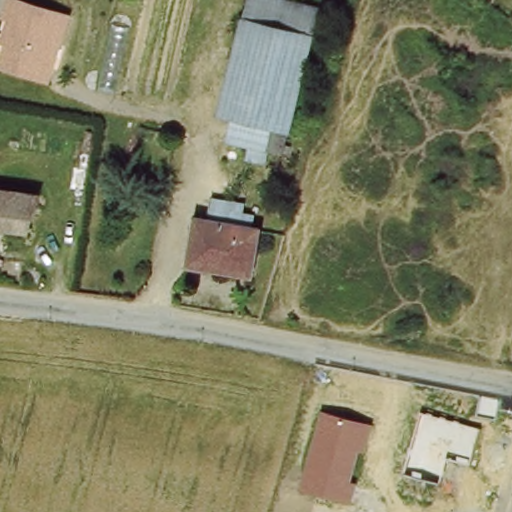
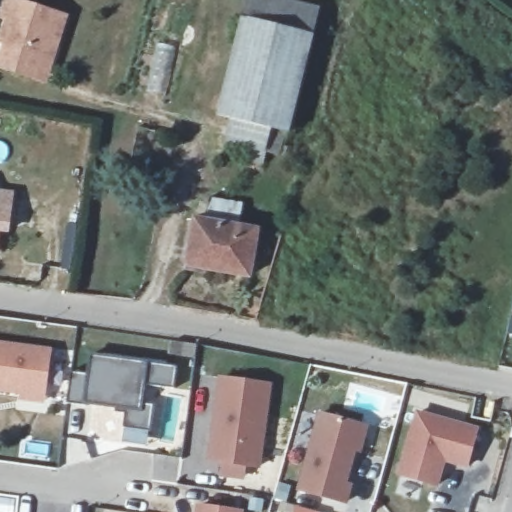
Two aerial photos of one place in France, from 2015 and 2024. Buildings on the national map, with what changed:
unchanged [(0,68),(6,46),(0,43),(6,21),(0,20),(7,0),(22,0),(70,14),(48,86),(0,70),(0,68)]
unchanged [(230,87),(251,0),(299,0),(324,6),(300,104),(297,103),(244,91),(230,87)]
unchanged [(297,103),(292,126),(278,123),(275,136),(258,132),(261,119),(239,114),(244,91),(297,103)]
unchanged [(3,221),(0,240),(0,182),(40,187),(40,201),(32,225),(3,221)]
unchanged [(261,228),(252,272),(192,261),(200,217),(261,228)]
new [(44,396),(0,389),(0,344),(50,351),(44,396)]
new [(86,404),(85,406),(67,404),(71,372),(89,374),(91,355),(177,367),(174,390),(144,385),(142,404),(154,405),(150,432),(123,428),(125,414),(115,413),(116,408),(86,404)]
new [(215,426),(219,426),(220,416),(216,416),(222,379),(270,385),(259,468),(210,461),(215,426)]
unchanged [(320,412),(372,427),(365,454),(358,452),(350,481),(355,482),(349,506),(299,492),(320,412)]
unchanged [(418,413),(479,429),(469,467),(447,461),(440,487),(402,477),(418,413)]
new [(242,512),(198,512),(199,506),(242,512)]
new [(296,512),(298,506),(320,512),(296,512)]

